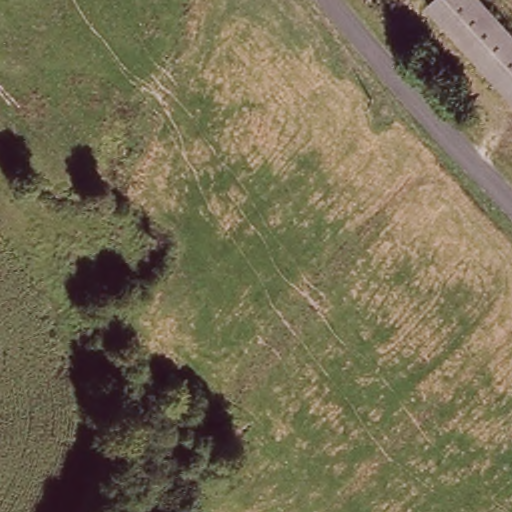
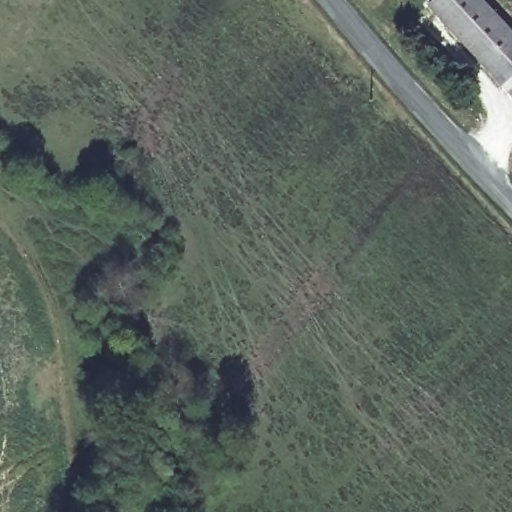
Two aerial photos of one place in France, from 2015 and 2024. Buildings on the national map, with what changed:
unchanged [(512,35),(512,92),(507,96),(425,4),(430,0),(481,0),(512,35)]

